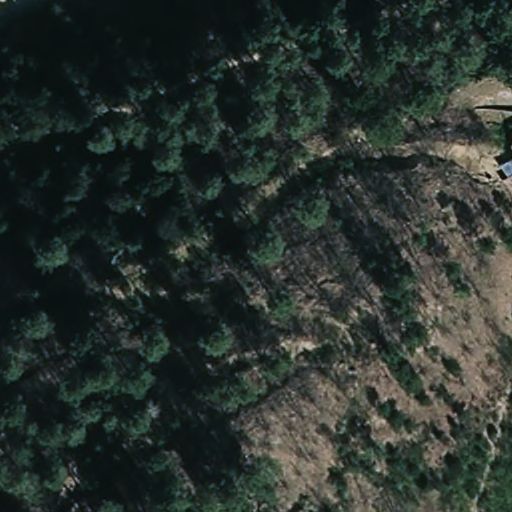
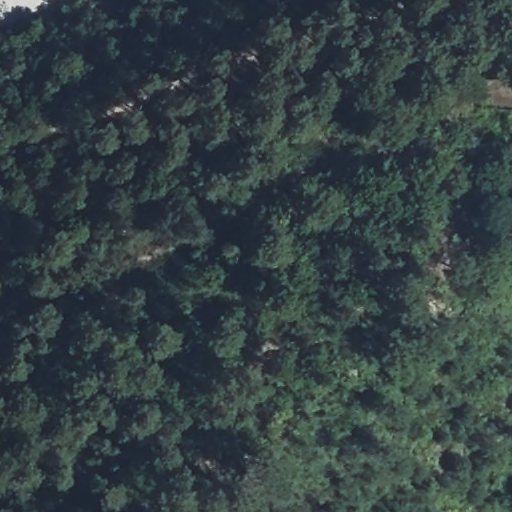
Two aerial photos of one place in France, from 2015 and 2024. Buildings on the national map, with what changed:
unchanged [(512,167),(512,189),(502,172),(512,167)]

